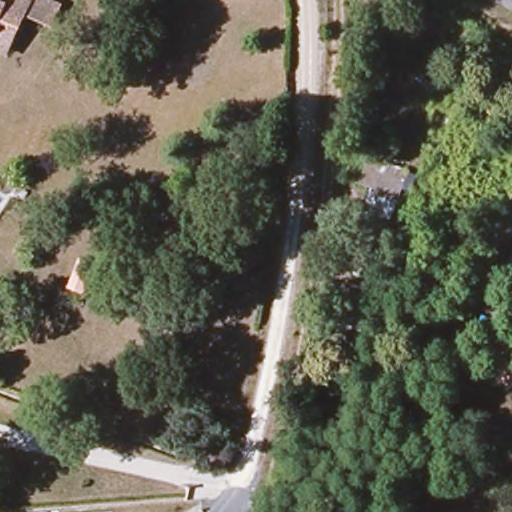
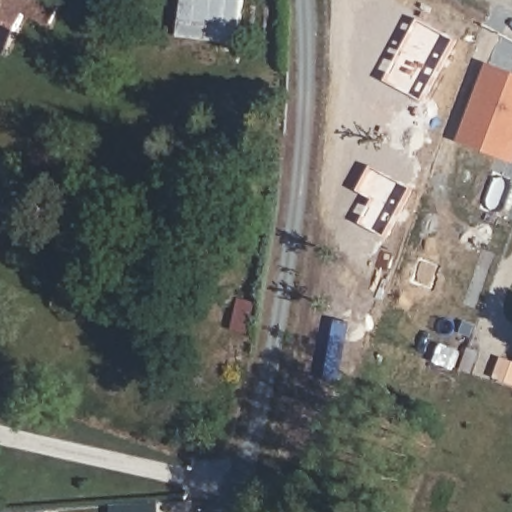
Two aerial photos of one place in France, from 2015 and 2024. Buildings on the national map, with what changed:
unchanged [(48,0),(57,4),(47,25),(24,14),(14,35),(3,58),(0,56),(0,0),(48,0)]
new [(240,0),(244,0),(239,46),(175,39),(180,0),(240,0)]
new [(488,63),(512,72),(512,163),(458,143),(488,63)]
unchanged [(403,188),(394,207),(355,187),(365,169),(403,188)]
new [(512,361),(512,384),(493,378),(500,357),(512,361)]
new [(156,500),(160,512),(110,512),(156,500)]

